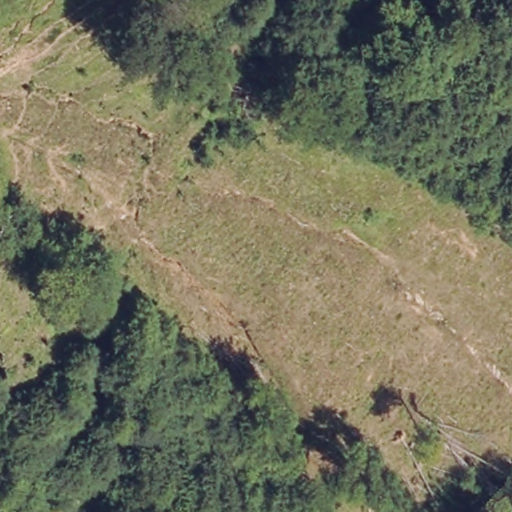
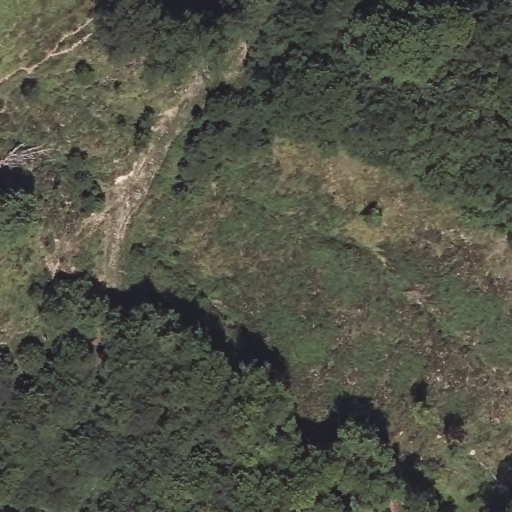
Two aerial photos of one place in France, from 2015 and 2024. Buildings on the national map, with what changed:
unchanged [(78,500),(63,512),(31,512),(63,485),(78,500)]

